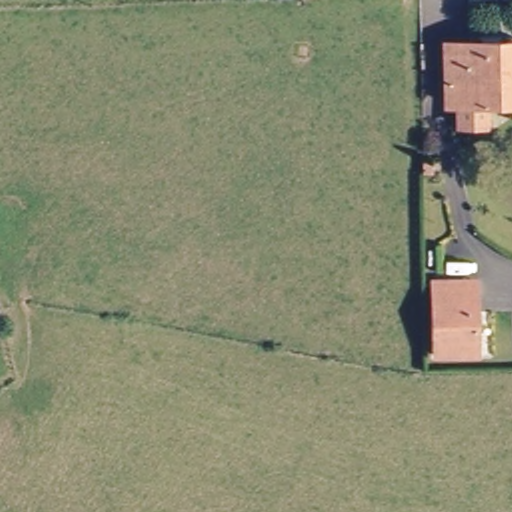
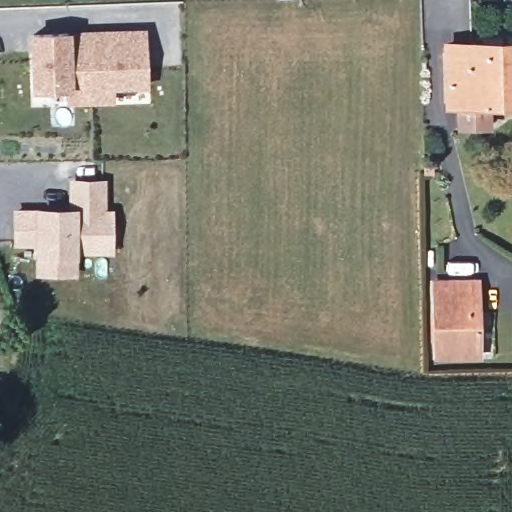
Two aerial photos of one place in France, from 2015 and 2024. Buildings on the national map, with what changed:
new [(140,39),(140,90),(107,90),(107,106),(65,107),(64,91),(30,92),(29,41),(140,39)]
unchanged [(446,42),(512,41),(512,96),(447,96),(446,42)]
new [(491,96),(490,129),(456,129),(457,96),(491,96)]
new [(34,248),(12,247),(12,216),(67,217),(68,187),(99,187),(98,217),(106,217),(105,255),(70,255),(70,260),(70,277),(34,277),(34,260),(34,248)]
unchanged [(437,352),(437,293),(437,279),(479,279),(479,294),(479,353),(437,352)]

